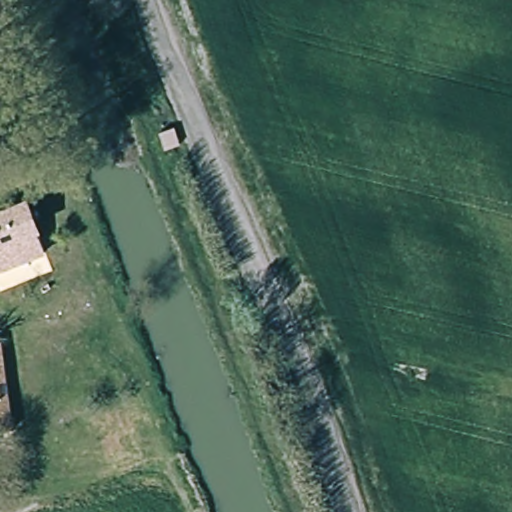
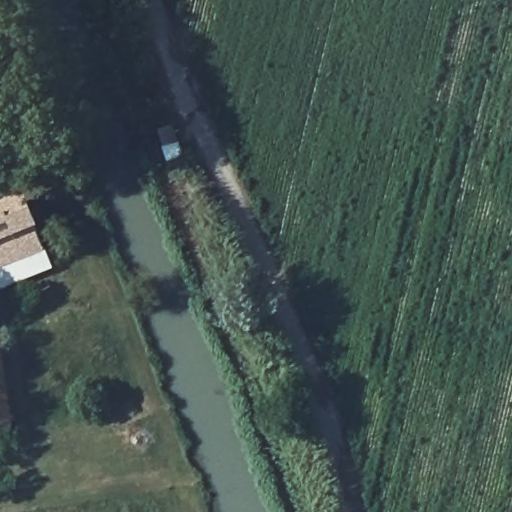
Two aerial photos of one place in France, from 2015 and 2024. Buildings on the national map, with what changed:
unchanged [(0,267),(0,209),(25,200),(43,251),(0,267)]
unchanged [(0,439),(0,352),(5,352),(15,438),(0,439)]

